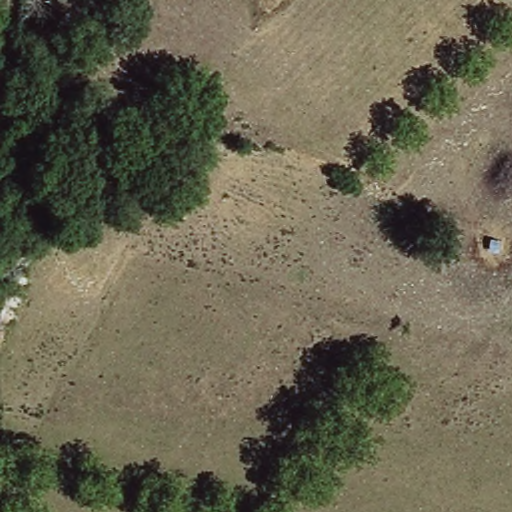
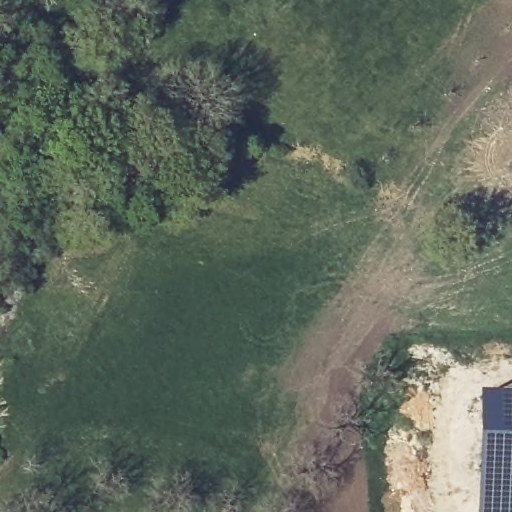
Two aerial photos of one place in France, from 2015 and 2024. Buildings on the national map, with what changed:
new [(495,396),(512,396),(512,512),(473,512),(475,397),(495,396)]

